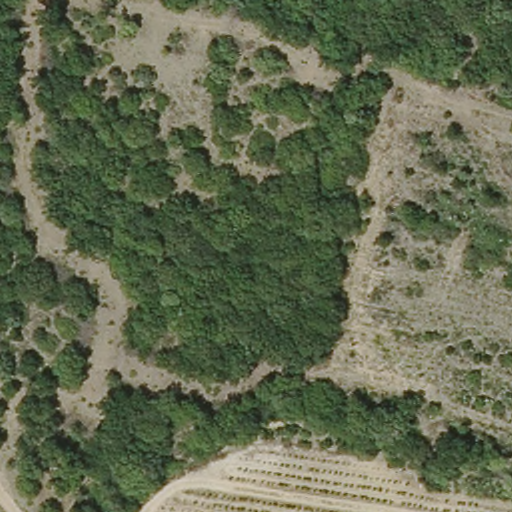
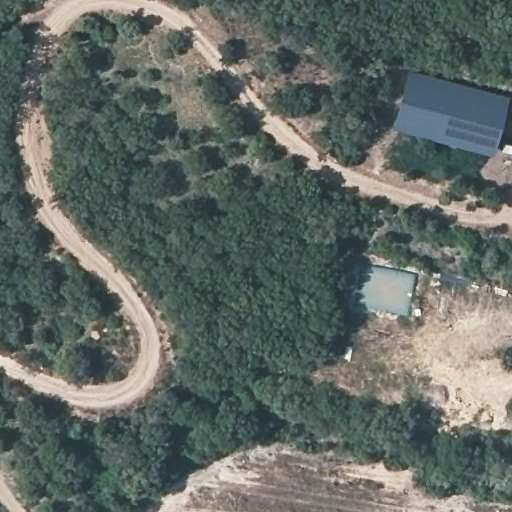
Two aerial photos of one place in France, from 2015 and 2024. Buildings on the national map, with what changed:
new [(409,69),(511,97),(496,153),(394,126),(409,69)]

